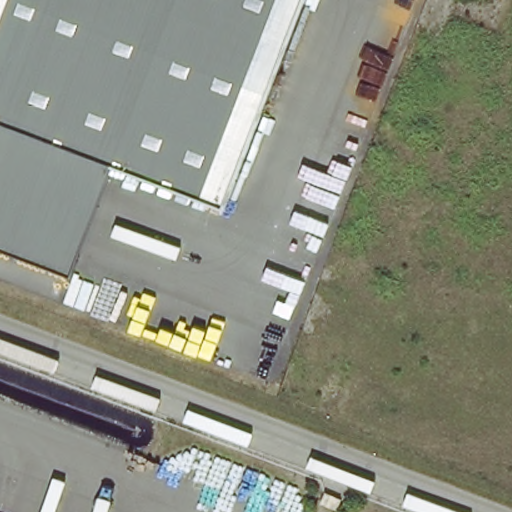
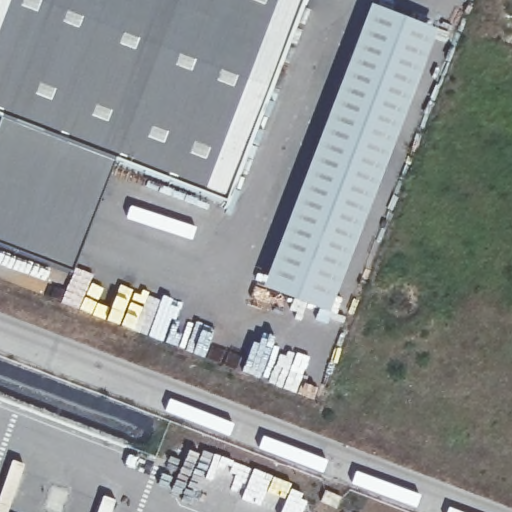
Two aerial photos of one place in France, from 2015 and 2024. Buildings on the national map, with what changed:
unchanged [(221,202),(106,159),(65,268),(0,244),(0,0),(298,0),(221,202)]
new [(371,6),(436,31),(328,312),(263,288),(371,6)]
new [(105,389),(0,350),(0,336),(110,377),(105,389)]

